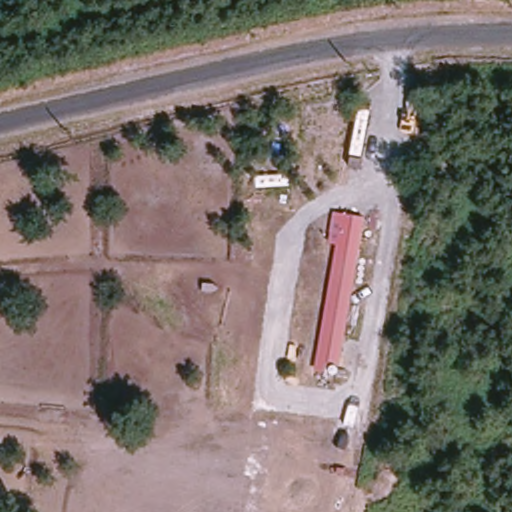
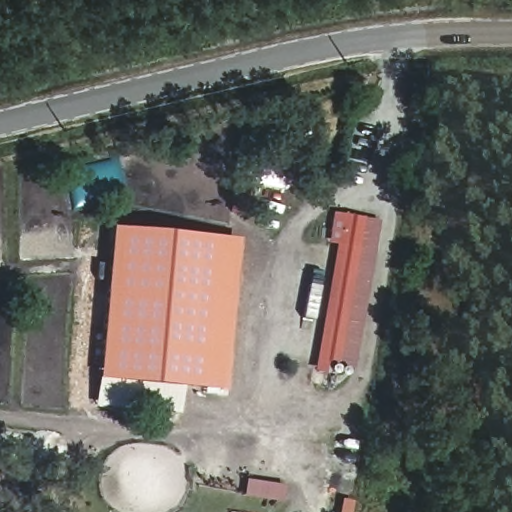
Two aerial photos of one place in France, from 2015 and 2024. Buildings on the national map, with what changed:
new [(292,192),(254,184),(249,210),(230,211),(234,179),(244,180),(245,171),(238,169),(242,147),(249,148),(299,158),(292,192)]
new [(348,340),(359,341),(356,363),(342,361),(336,366),(334,375),(315,373),(335,244),(328,243),(335,213),(366,218),(348,340)]
new [(111,227),(240,238),(226,391),(185,387),(97,379),(111,227)]
new [(95,405),(97,379),(185,387),(180,414),(95,405)]

